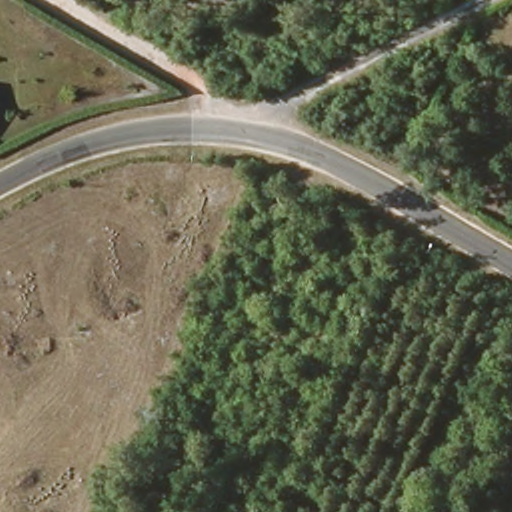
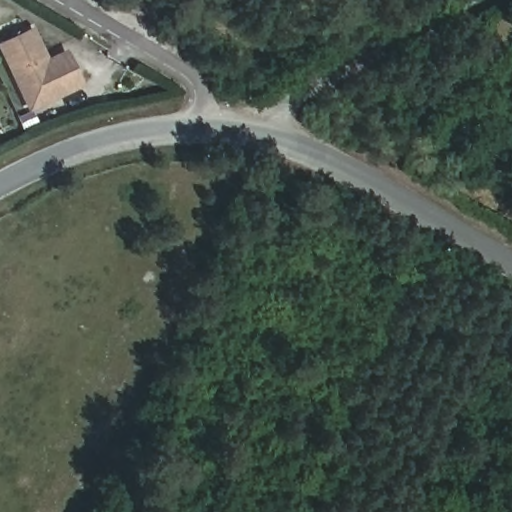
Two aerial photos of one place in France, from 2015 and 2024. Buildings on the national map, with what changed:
new [(0,52),(0,42),(33,26),(48,57),(66,48),(84,85),(28,112),(0,52)]

